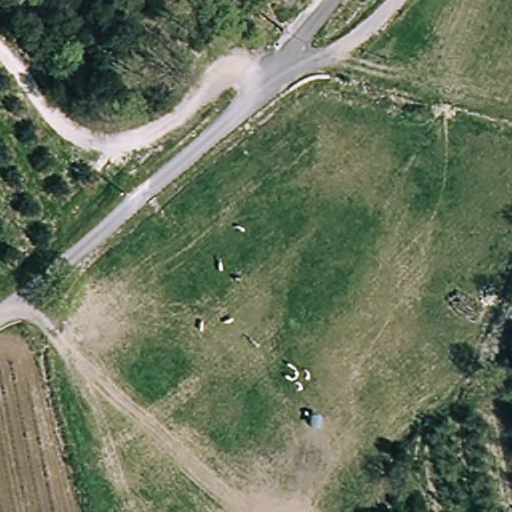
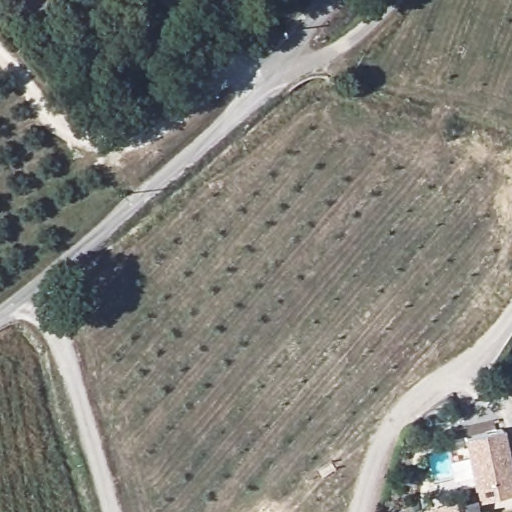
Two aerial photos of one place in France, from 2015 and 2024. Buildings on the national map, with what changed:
new [(512,488),(512,497),(480,504),(476,488),(473,489),(462,438),(500,430),(512,488)]
new [(458,512),(424,512),(456,504),(458,512)]

